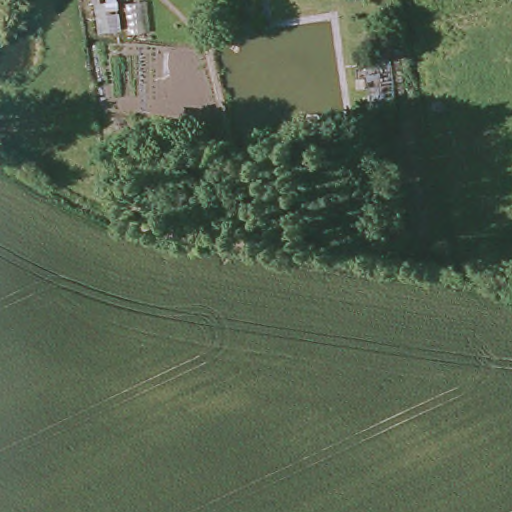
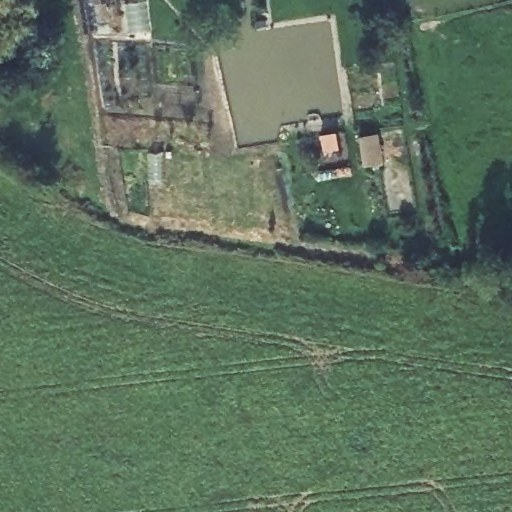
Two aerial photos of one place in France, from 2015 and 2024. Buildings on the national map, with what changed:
unchanged [(100,32),(95,3),(94,3),(93,0),(106,0),(106,1),(104,1),(109,31),(100,32)]

